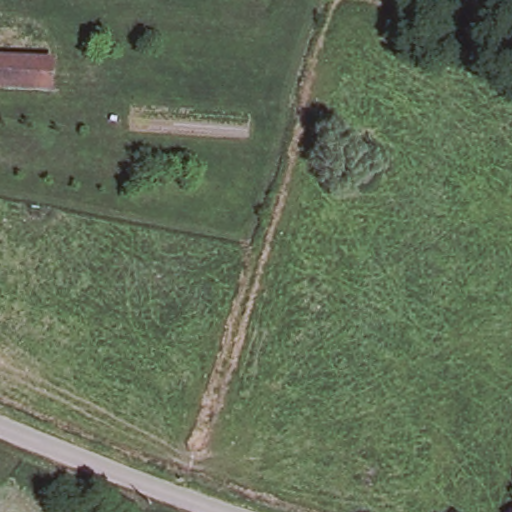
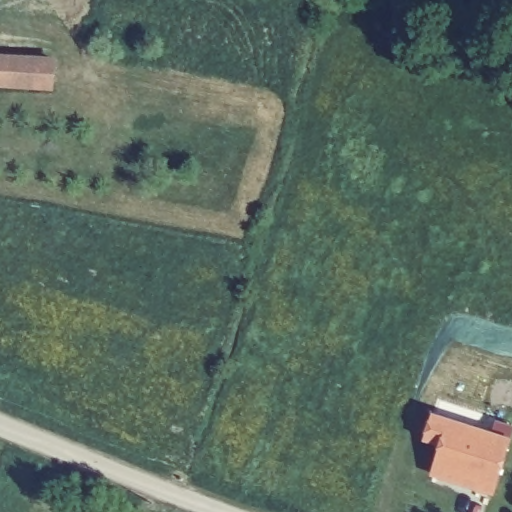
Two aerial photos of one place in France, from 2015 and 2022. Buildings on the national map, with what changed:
unchanged [(51,58),(50,87),(0,84),(0,55),(51,58)]
new [(511,438),(493,497),(429,478),(438,447),(423,442),(430,412),(511,438)]

